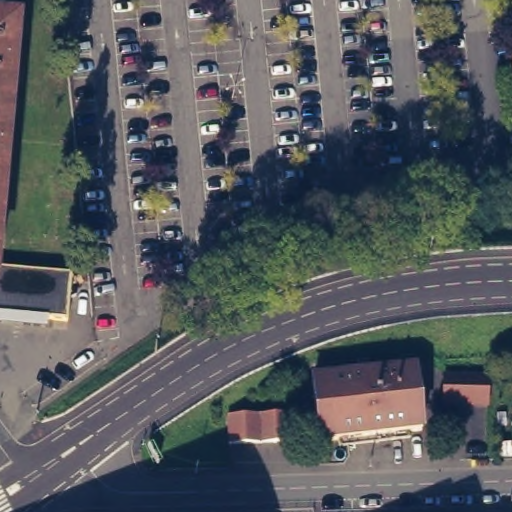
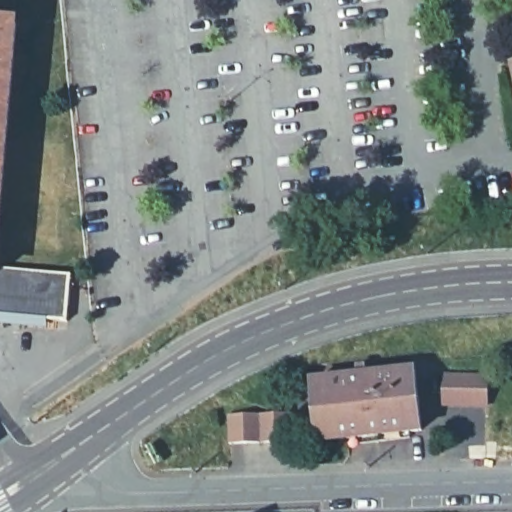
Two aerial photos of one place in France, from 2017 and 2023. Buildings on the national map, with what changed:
unchanged [(22,20),(0,263),(0,269),(0,18),(22,20)]
unchanged [(0,263),(77,270),(72,317),(0,311),(0,269),(0,263)]
unchanged [(422,368),(425,430),(318,437),(314,375),(360,372),(359,361),(368,360),(368,372),(422,368)]
unchanged [(453,407),(451,377),(494,375),(495,405),(453,407)]
unchanged [(235,443),(235,414),(297,412),(298,441),(235,443)]

